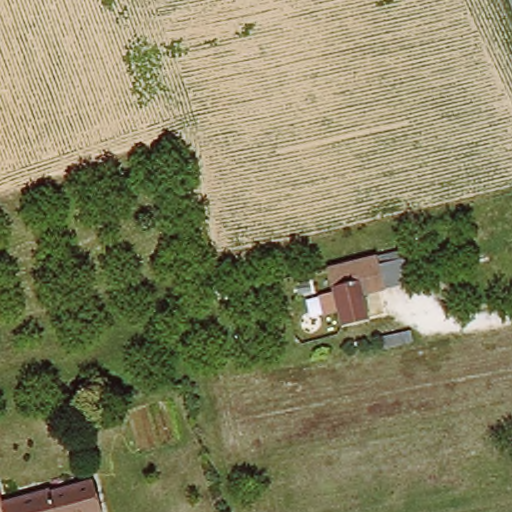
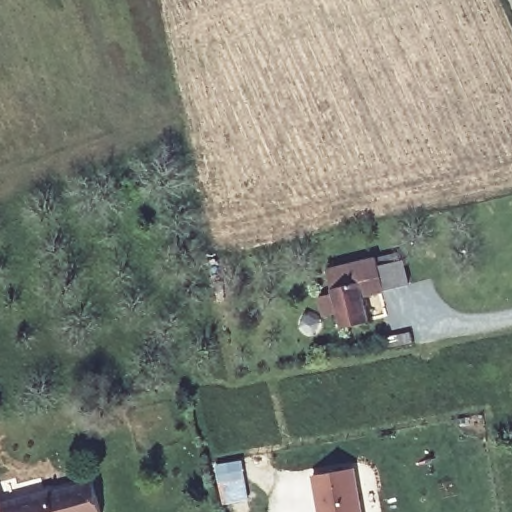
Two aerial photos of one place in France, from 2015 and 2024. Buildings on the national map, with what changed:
unchanged [(362,295),(369,319),(343,327),(327,271),(377,257),(385,288),(362,295)]
new [(312,476),(356,468),(363,512),(318,512),(312,476)]
unchanged [(85,473),(98,512),(0,512),(0,500),(85,473)]

